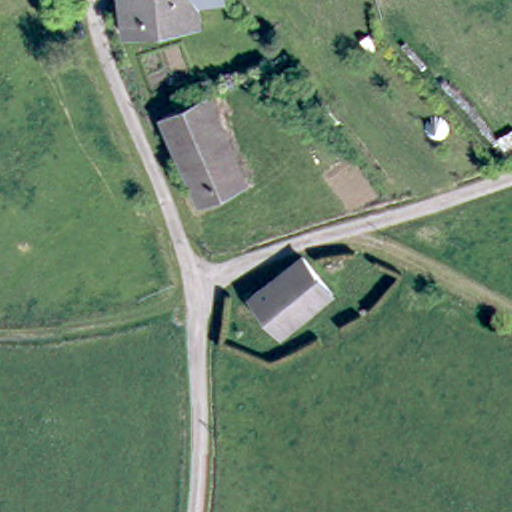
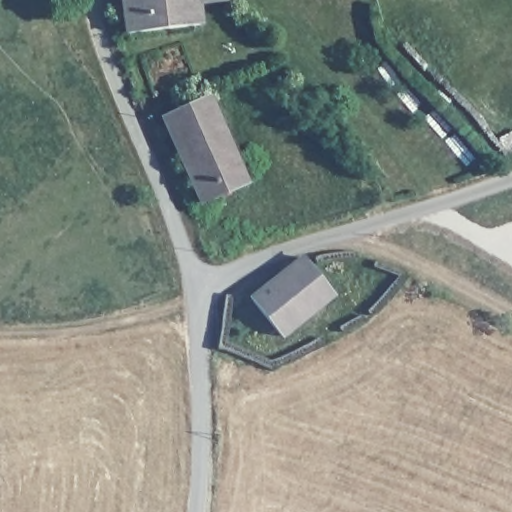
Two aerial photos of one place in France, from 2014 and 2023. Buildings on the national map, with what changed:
unchanged [(197,5),(202,29),(127,39),(121,0),(197,0),(197,5)]
unchanged [(224,1),(197,5),(197,0),(223,0),(224,1)]
unchanged [(250,186),(205,206),(167,118),(212,99),(250,186)]
unchanged [(335,302),(282,341),(254,301),(306,265),(335,302)]

